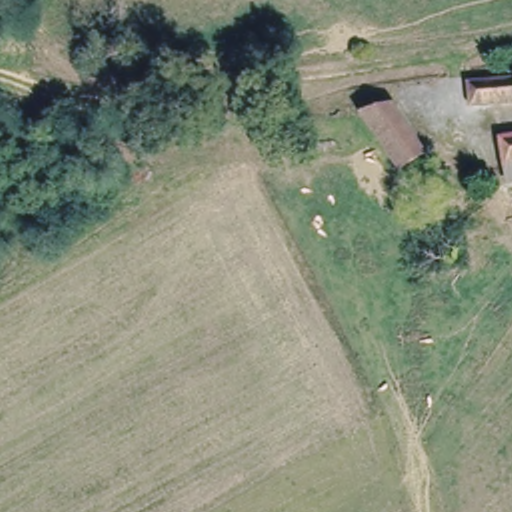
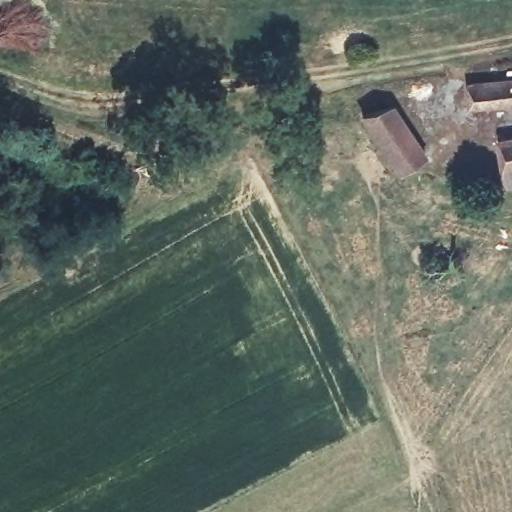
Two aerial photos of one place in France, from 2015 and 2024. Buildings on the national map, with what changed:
unchanged [(512,102),(473,103),(471,89),(470,81),(512,80),(512,102)]
unchanged [(397,114),(415,141),(392,159),(368,122),(397,114)]
unchanged [(512,184),(507,185),(500,144),(512,141),(512,184)]

